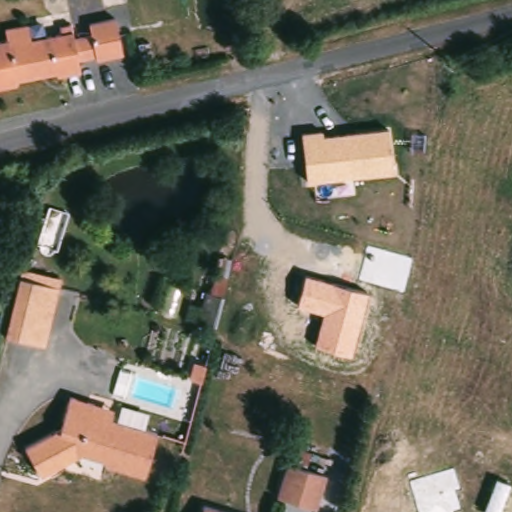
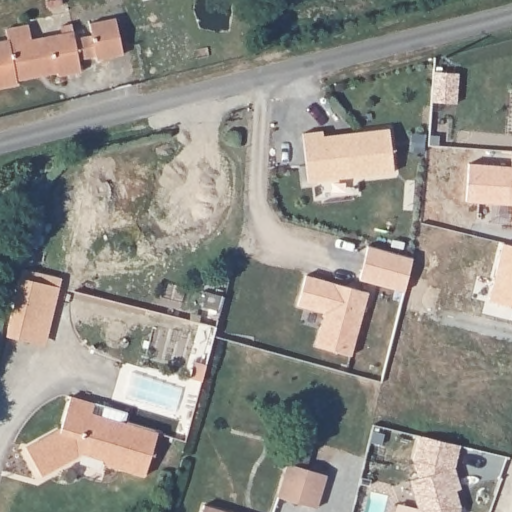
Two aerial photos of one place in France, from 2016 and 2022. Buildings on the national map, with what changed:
unchanged [(88,23),(114,18),(122,56),(93,60),(91,47),(90,39),(88,23)]
unchanged [(3,31),(26,27),(29,42),(58,38),(57,30),(70,28),(72,42),(90,39),(93,60),(75,63),(77,75),(51,79),(50,72),(11,78),(12,85),(0,87),(0,43),(5,42),(3,31)]
unchanged [(322,132),(323,138),(387,130),(394,174),(308,184),(301,133),(322,132)]
new [(510,227),(512,204),(464,201),(467,163),(510,167),(511,152),(512,152),(512,227),(510,227)]
unchanged [(38,341),(0,330),(20,265),(58,277),(38,341)]
unchanged [(368,293),(350,357),(314,346),(323,313),(297,306),(305,275),(368,293)]
unchanged [(90,406),(108,412),(105,422),(153,438),(138,482),(95,468),(97,462),(75,455),(25,483),(10,455),(56,429),(66,399),(90,406)]
new [(410,480),(419,478),(413,460),(419,436),(459,445),(454,468),(460,489),(455,490),(461,509),(460,512),(417,512),(418,507),(410,480)]
unchanged [(326,476),(313,510),(276,496),(289,462),(326,476)]
unchanged [(197,512),(199,506),(216,512),(197,512)]

